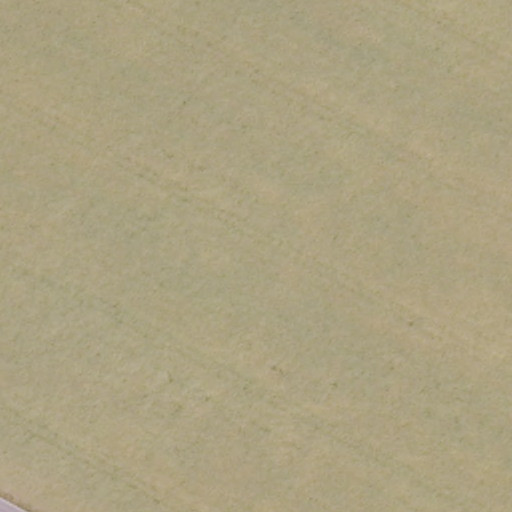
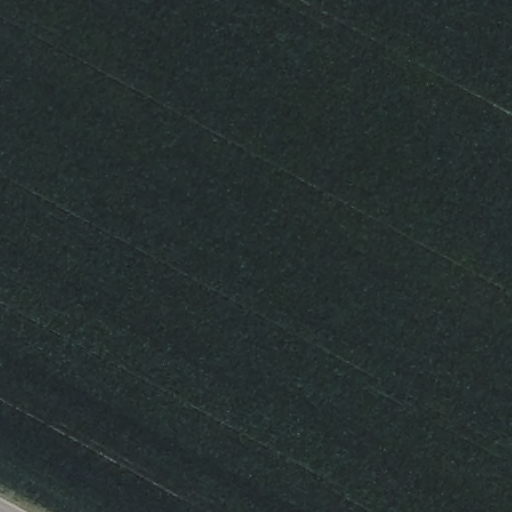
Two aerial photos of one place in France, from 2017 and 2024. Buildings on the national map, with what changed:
[]

